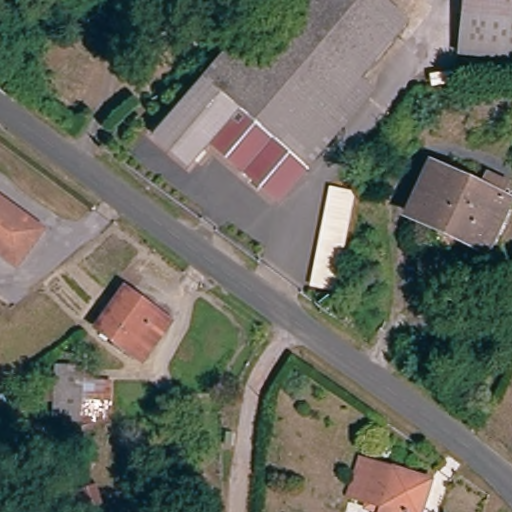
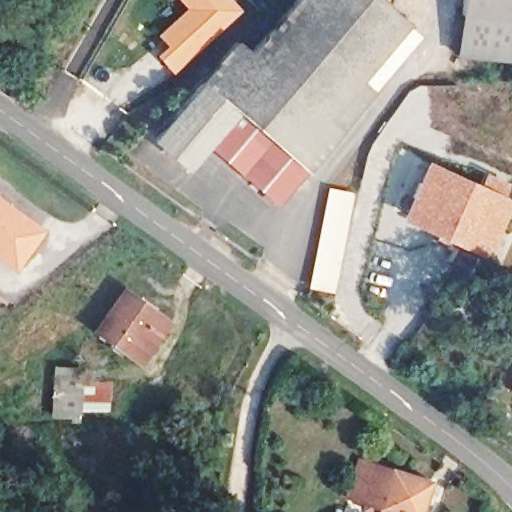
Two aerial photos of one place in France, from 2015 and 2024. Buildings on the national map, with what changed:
new [(165,44),(156,34),(185,7),(179,0),(234,0),(242,9),(174,73),(156,54),(165,44)]
unchanged [(256,62),(276,33),(300,0),(379,0),(403,19),(330,121),(271,76),(211,157),(225,167),(215,184),(167,152),(219,75),(235,51),(245,56),(256,62)]
unchanged [(460,19),(462,0),(512,0),(512,25),(460,19)]
unchanged [(453,58),(460,19),(512,25),(512,67),(453,58)]
unchanged [(211,157),(271,76),(330,121),(350,134),(291,216),(225,167),(211,157)]
unchanged [(377,90),(350,134),(330,121),(360,78),(377,90)]
unchanged [(451,246),(448,253),(429,243),(437,228),(408,218),(435,166),(486,191),(495,175),(511,183),(504,199),(511,204),(490,252),(485,261),(451,246)]
unchanged [(355,192),(337,292),(309,286),(328,187),(355,192)]
unchanged [(15,264),(0,253),(0,205),(40,233),(15,264)]
unchanged [(171,330),(144,367),(93,331),(122,295),(171,330)]
demolished [(257,360),(248,353),(252,343),(263,351),(257,360)]
unchanged [(94,370),(92,386),(110,385),(112,425),(49,424),(51,370),(94,370)]
new [(512,383),(512,384),(511,384),(512,383)]
unchanged [(354,464),(428,484),(423,512),(367,512),(343,506),(354,464)]

